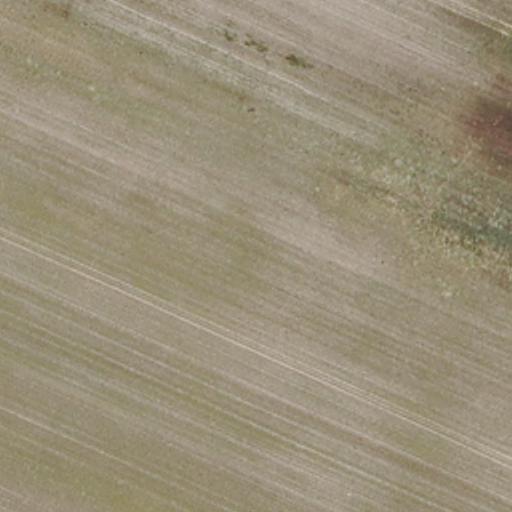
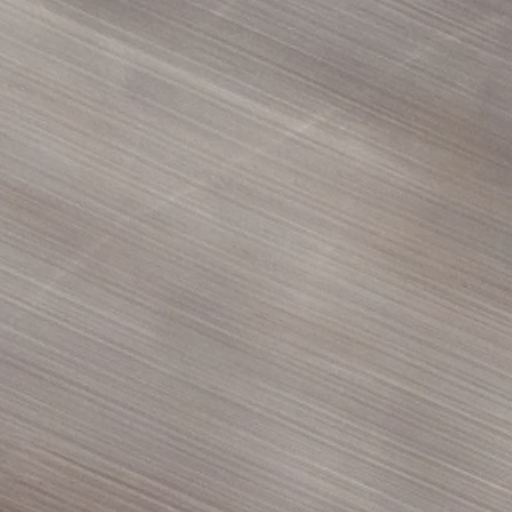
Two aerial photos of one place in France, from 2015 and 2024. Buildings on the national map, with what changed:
[]

